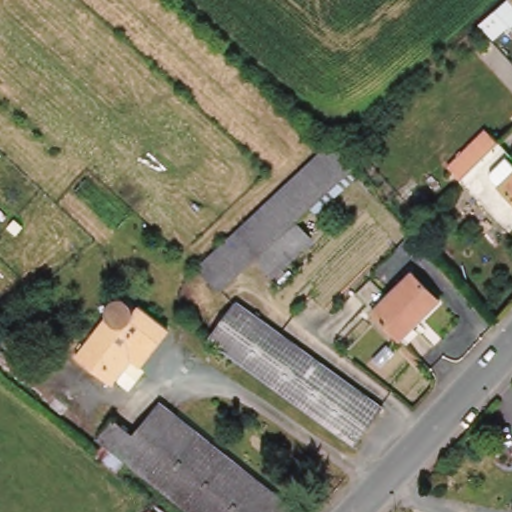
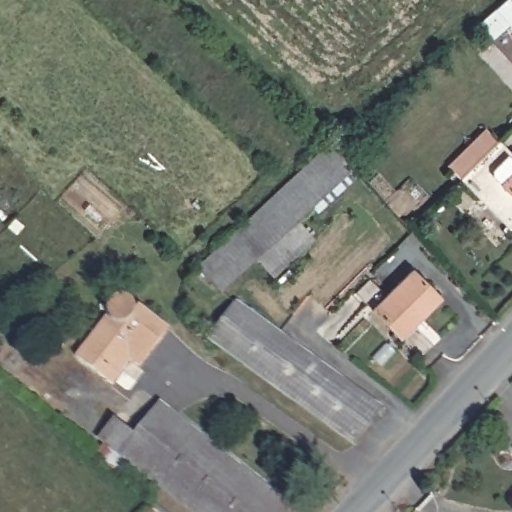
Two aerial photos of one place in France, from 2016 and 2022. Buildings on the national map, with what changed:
unchanged [(502,226),(446,166),(484,133),(512,159),(512,221),(502,226)]
unchanged [(326,147),(337,155),(361,171),(321,206),(316,201),(295,219),(309,236),(272,271),(254,254),(215,289),(196,270),(206,261),(326,147)]
unchanged [(372,279),(390,297),(411,276),(437,303),(397,343),(353,298),(372,279)]
unchanged [(284,393),(210,341),(236,306),(381,404),(356,439),(353,443),(284,393)]
unchanged [(109,323),(110,312),(119,308),(135,313),(140,309),(169,335),(135,371),(128,370),(120,367),(106,384),(75,355),(77,353),(109,323)]
unchanged [(160,404),(287,512),(181,512),(95,442),(111,419),(132,432),(160,404)]

